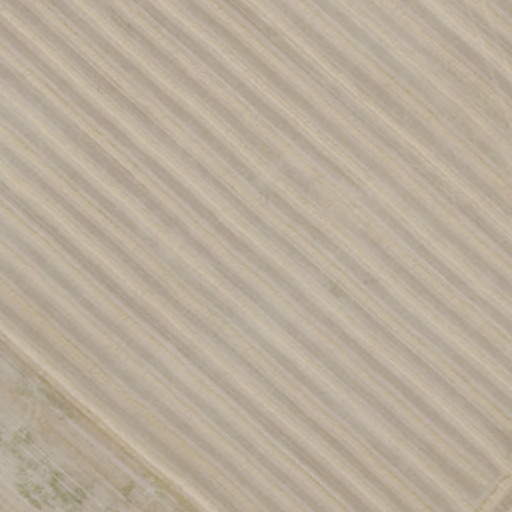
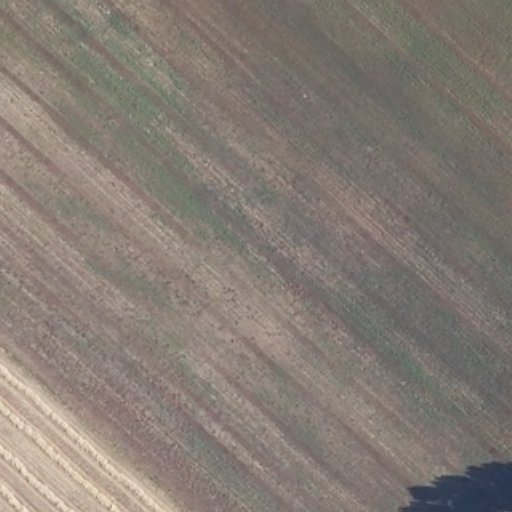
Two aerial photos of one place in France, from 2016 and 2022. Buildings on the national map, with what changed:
[]

